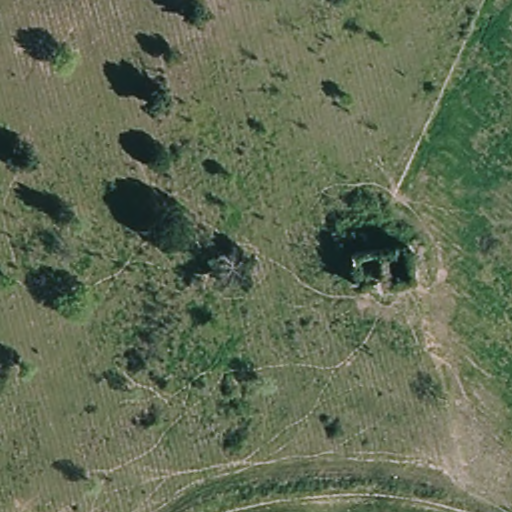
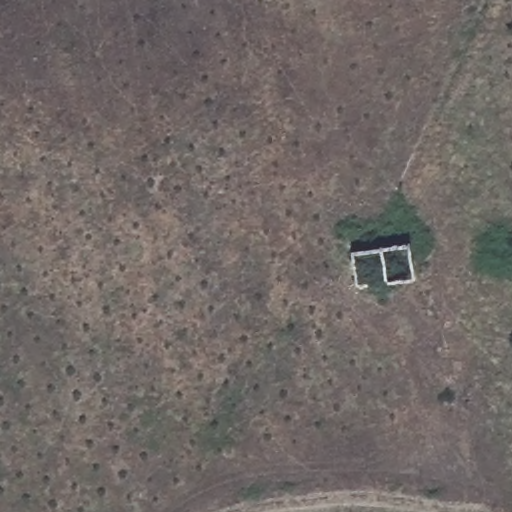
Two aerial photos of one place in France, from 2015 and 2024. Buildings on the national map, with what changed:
[]

